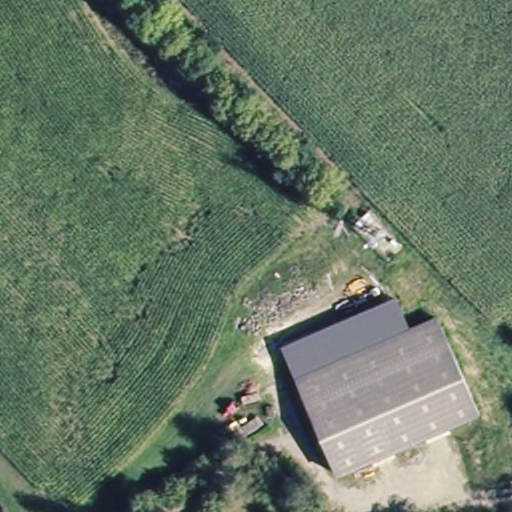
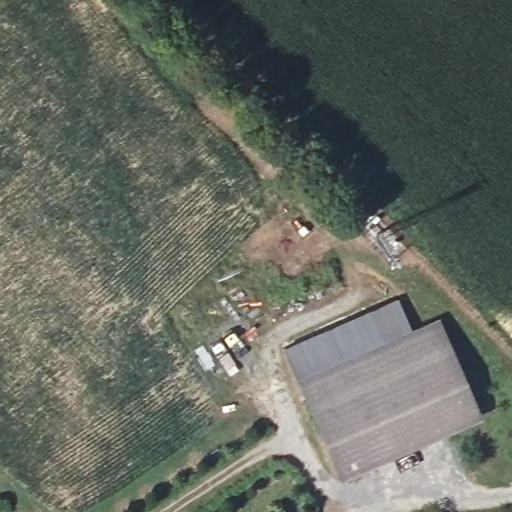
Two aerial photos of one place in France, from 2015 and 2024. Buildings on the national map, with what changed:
unchanged [(281,344),(396,296),(409,327),(405,329),(295,376),(281,344)]
unchanged [(477,415),(337,475),(295,376),(405,329),(435,316),(477,415)]

